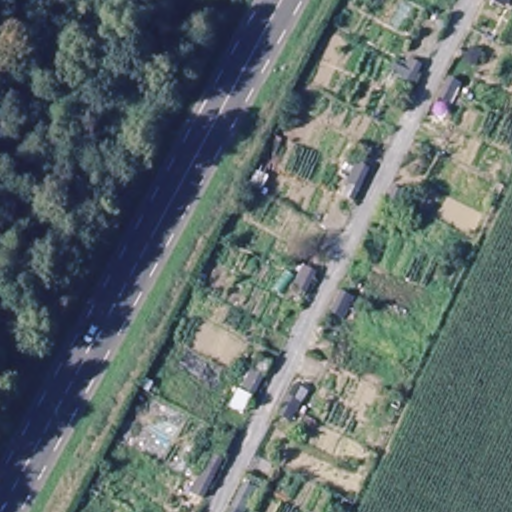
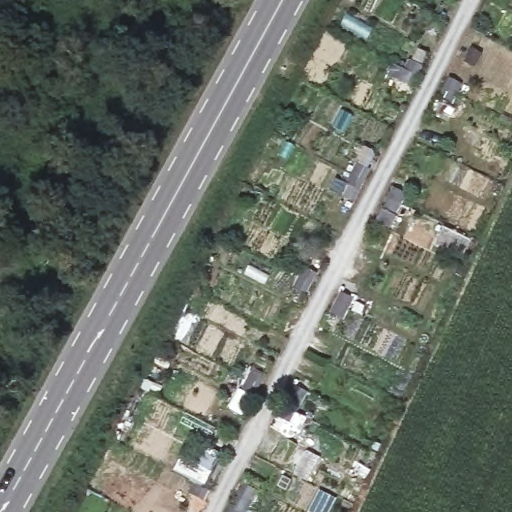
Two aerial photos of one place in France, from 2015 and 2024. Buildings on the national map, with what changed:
[]

